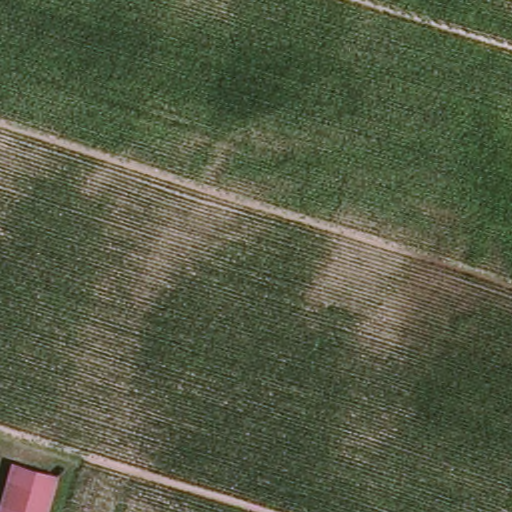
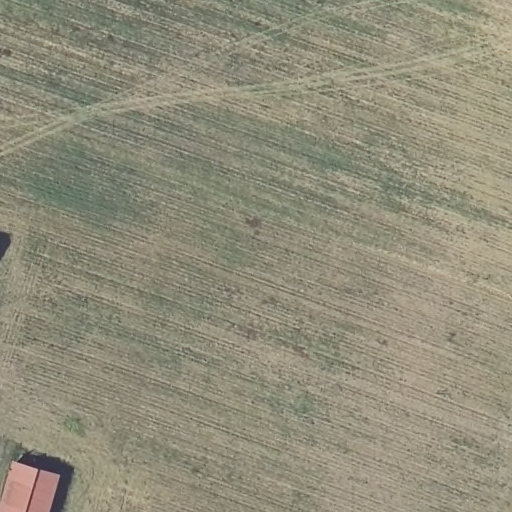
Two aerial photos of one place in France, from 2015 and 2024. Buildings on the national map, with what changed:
unchanged [(14,467),(56,480),(47,512),(0,512),(14,467)]

